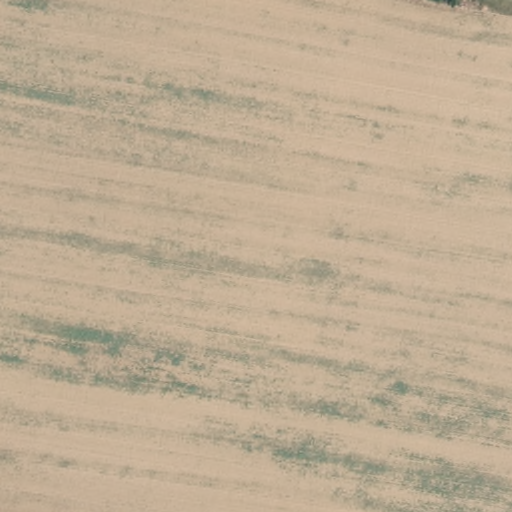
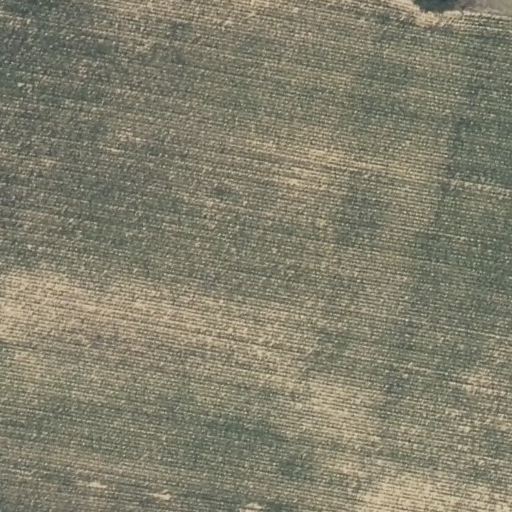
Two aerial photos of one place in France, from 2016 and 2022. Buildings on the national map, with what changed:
[]

